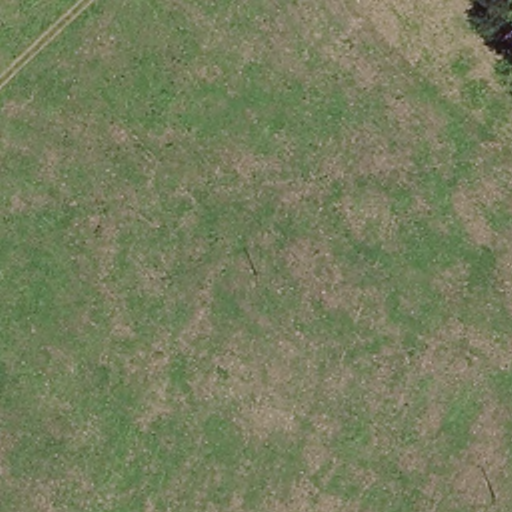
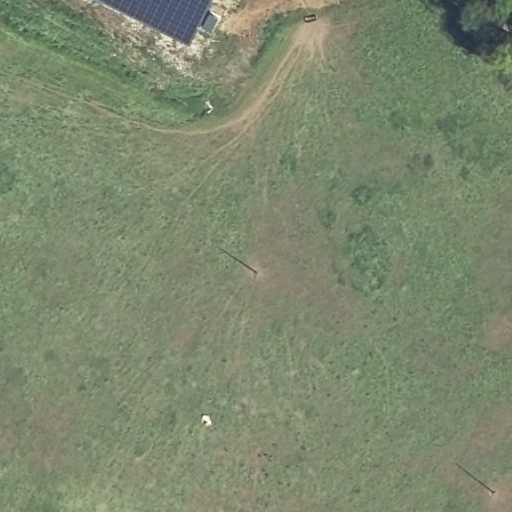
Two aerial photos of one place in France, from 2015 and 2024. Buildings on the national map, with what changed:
new [(192,41),(109,0),(214,0),(209,12),(192,41)]

